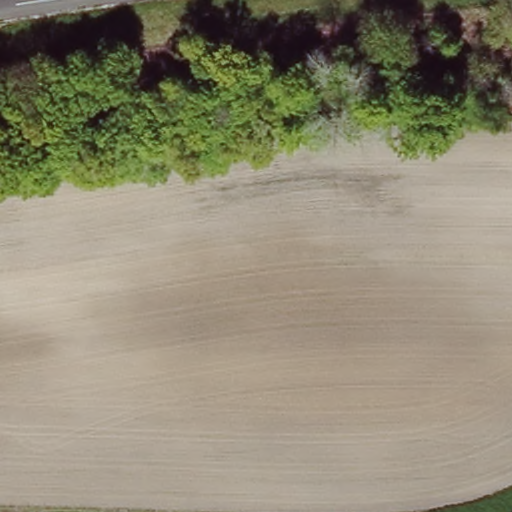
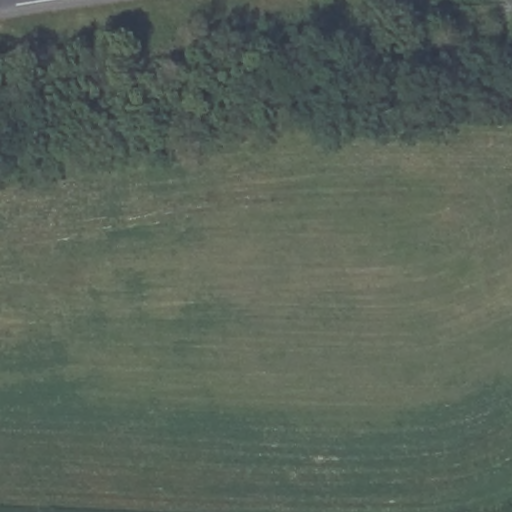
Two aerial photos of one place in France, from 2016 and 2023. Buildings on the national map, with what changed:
unchanged [(489,81),(512,81),(512,107),(490,107),(489,81)]

